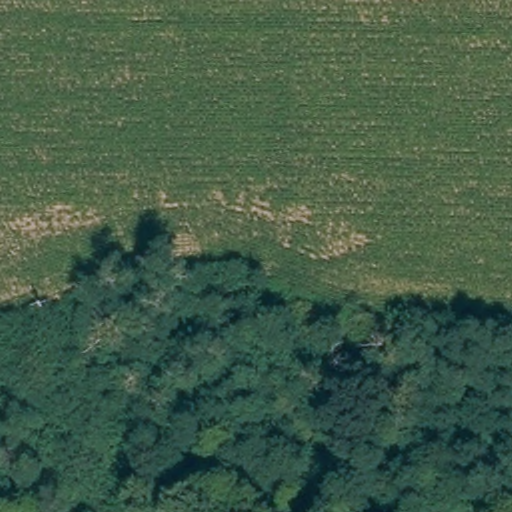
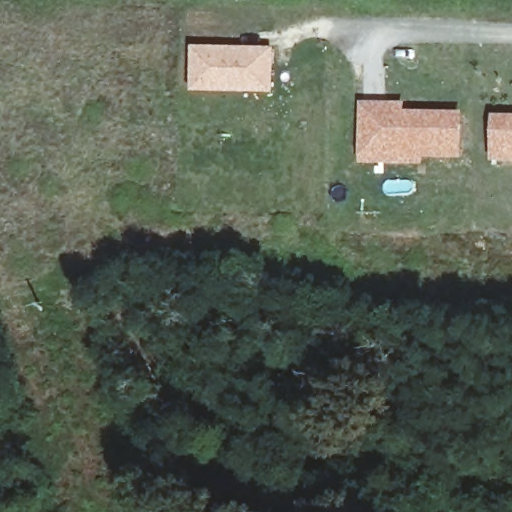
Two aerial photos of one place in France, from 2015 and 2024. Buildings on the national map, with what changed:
new [(275,47),(274,93),(190,92),(191,46),(275,47)]
new [(405,102),(405,110),(462,111),(461,159),(424,159),(423,164),(360,164),(359,101),(405,102)]
new [(512,114),(512,164),(491,163),(493,114),(512,114)]

